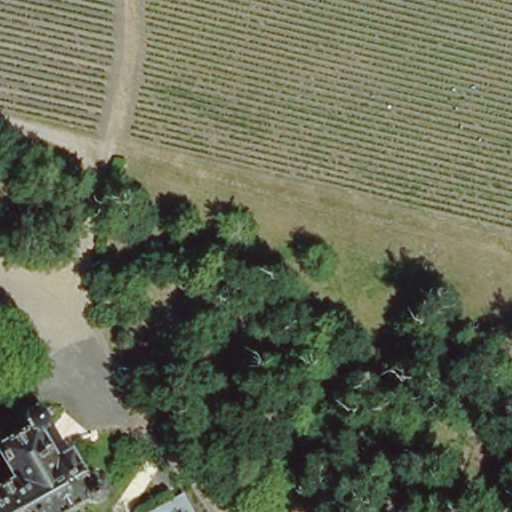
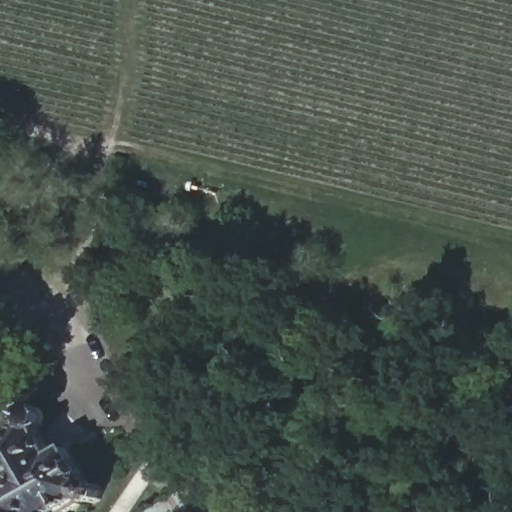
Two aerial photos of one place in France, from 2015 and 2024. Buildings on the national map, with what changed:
unchanged [(40,411),(46,412),(51,416),(54,420),(56,424),(55,429),(52,435),(51,437),(66,463),(79,456),(99,494),(103,494),(108,496),(110,500),(110,504),(109,509),(104,511),(100,510),(97,509),(94,505),(82,512),(0,512),(0,471),(9,466),(1,452),(19,440),(17,435),(15,428),(17,423),(19,419),(25,416),(30,413),(36,411),(40,411)]
unchanged [(180,503),(185,512),(166,512),(180,503)]

